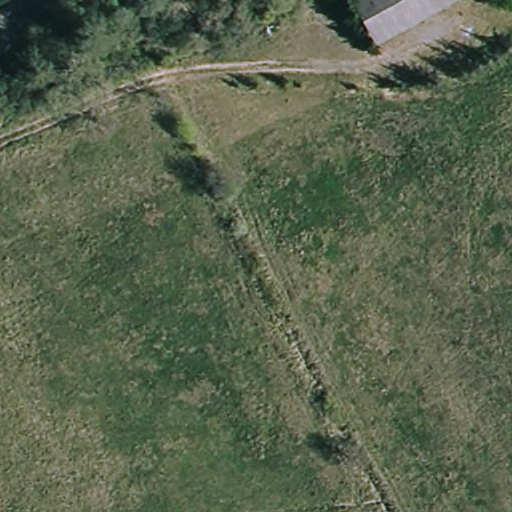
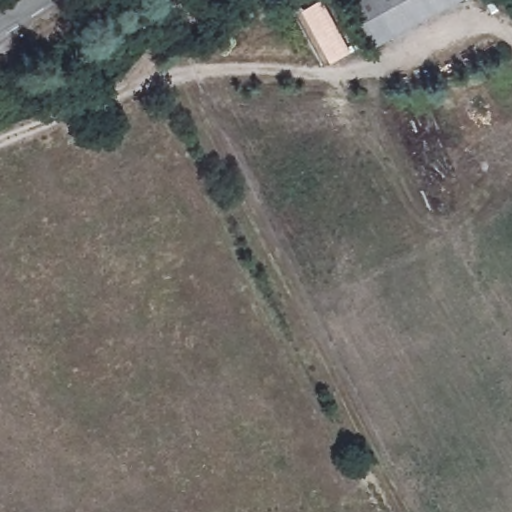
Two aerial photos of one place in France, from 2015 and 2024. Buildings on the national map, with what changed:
new [(352,52),(330,64),(301,11),(321,0),(323,0),(352,52)]
unchanged [(377,48),(350,0),(463,0),(377,48)]

